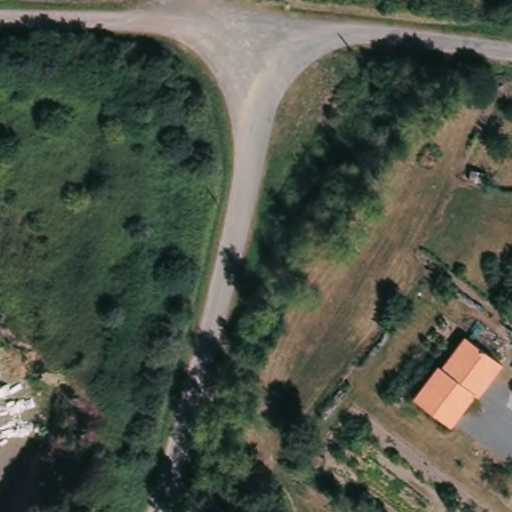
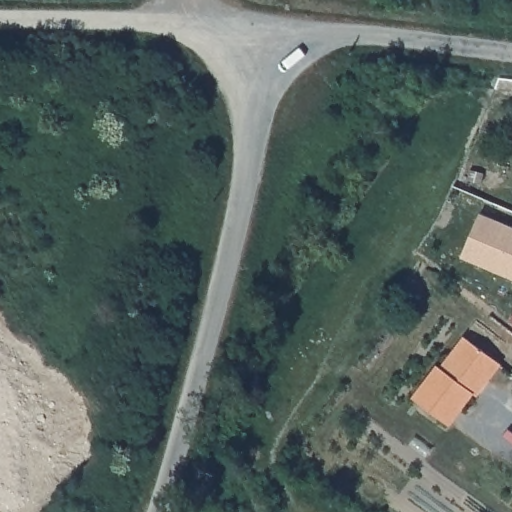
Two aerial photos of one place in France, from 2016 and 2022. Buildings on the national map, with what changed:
new [(512,227),(512,278),(462,256),(480,213),(512,227)]
unchanged [(505,360),(481,392),(478,389),(454,422),(417,394),(441,361),(445,363),(468,332),(505,360)]

